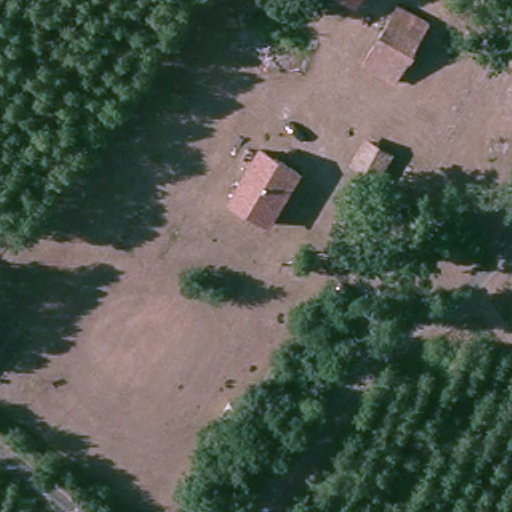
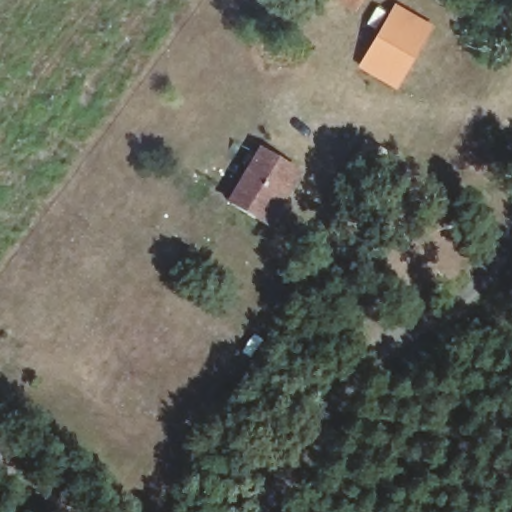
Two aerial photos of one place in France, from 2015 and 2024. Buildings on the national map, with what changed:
unchanged [(334,0),(346,0),(343,5),(334,0)]
unchanged [(395,87),(358,66),(390,0),(425,23),(395,87)]
unchanged [(349,165),(363,141),(381,152),(388,157),(373,180),(349,165)]
unchanged [(266,226),(228,203),(258,155),(260,152),(298,171),(266,226)]

